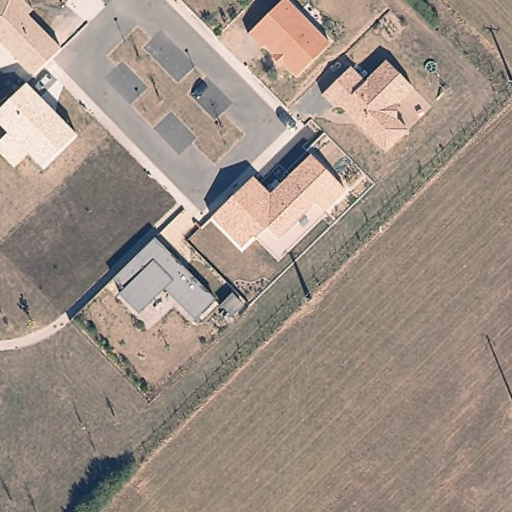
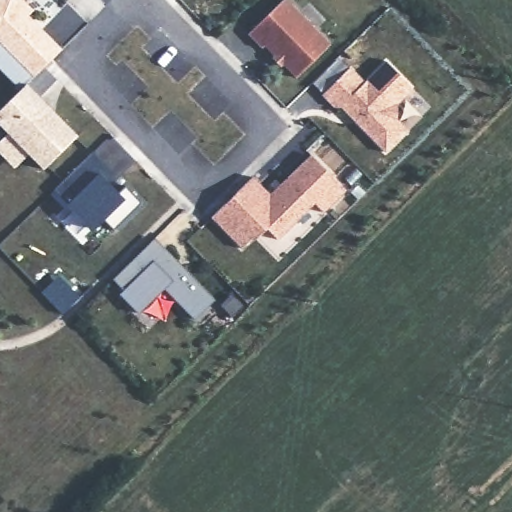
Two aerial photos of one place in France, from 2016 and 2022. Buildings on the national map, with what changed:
unchanged [(29,13),(62,49),(34,76),(0,42),(0,0),(23,0),(34,8),(29,13)]
unchanged [(294,81),(249,33),(282,0),(288,0),(331,42),(294,81)]
unchanged [(412,88),(395,107),(395,116),(408,131),(385,153),(341,108),(335,110),(322,95),(351,66),(365,80),(386,60),(412,88)]
unchanged [(79,135),(44,171),(29,154),(15,169),(0,154),(0,140),(7,133),(0,126),(0,110),(27,83),(79,135)]
new [(94,151),(109,166),(101,173),(120,192),(127,185),(144,202),(115,230),(104,217),(92,228),(69,203),(71,202),(57,187),(94,151)]
unchanged [(254,176),(255,176),(272,193),(310,157),(343,191),(322,211),(313,203),(277,239),(267,228),(256,239),(253,236),(242,248),(211,217),(254,176)]
unchanged [(216,300),(194,321),(163,289),(138,314),(117,293),(122,288),(114,279),(155,238),(216,300)]

